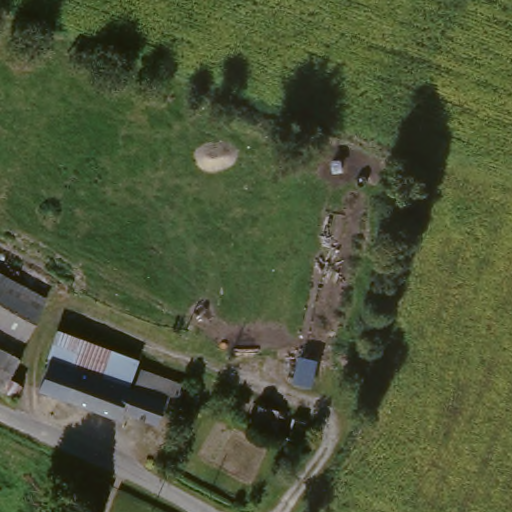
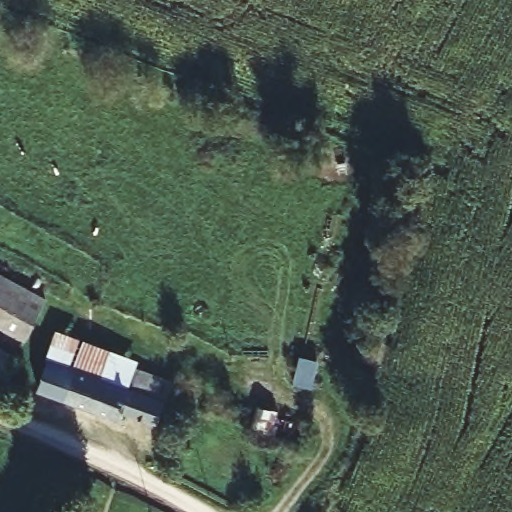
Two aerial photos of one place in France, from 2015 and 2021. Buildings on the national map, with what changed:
unchanged [(32,328),(0,313),(0,273),(47,295),(32,328)]
unchanged [(143,355),(143,361),(186,380),(208,381),(206,403),(172,402),(164,418),(129,409),(127,415),(46,383),(56,352),(65,323),(143,355)]
unchanged [(9,385),(0,381),(0,342),(23,352),(9,385)]
unchanged [(258,426),(262,407),(301,413),(298,433),(258,426)]

